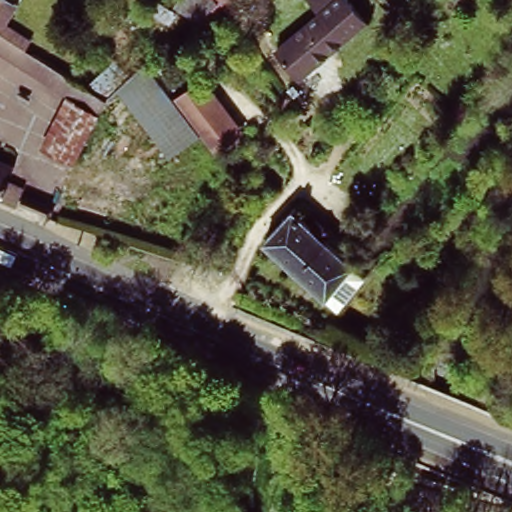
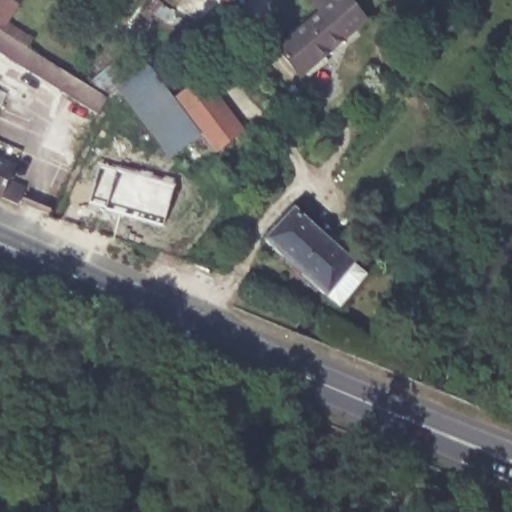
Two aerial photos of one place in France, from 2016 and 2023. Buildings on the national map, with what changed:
unchanged [(179,0),(210,0),(197,12),(179,0)]
unchanged [(320,12),(310,0),(349,0),(365,19),(302,74),(279,47),(320,12)]
unchanged [(118,60),(127,72),(104,100),(77,165),(40,148),(67,94),(0,53),(0,30),(87,83),(118,60)]
unchanged [(114,88),(147,60),(203,132),(171,158),(114,88)]
unchanged [(201,78),(252,145),(229,163),(203,132),(201,129),(175,97),(201,78)]
unchanged [(0,201),(0,200),(0,158),(15,164),(0,201)]
unchanged [(288,207),(302,219),(307,213),(323,229),(319,234),(350,262),(349,263),(361,275),(334,306),(329,301),(320,293),(260,238),(288,207)]

